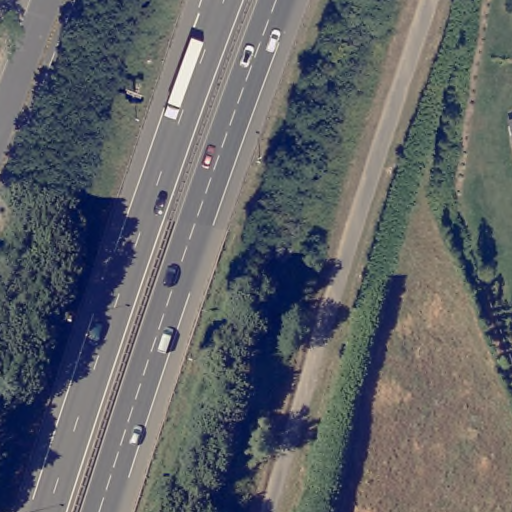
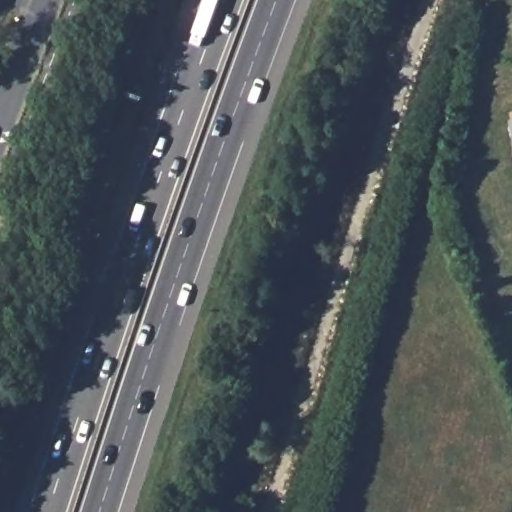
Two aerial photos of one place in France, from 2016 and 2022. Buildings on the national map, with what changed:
unchanged [(512,120),(512,133),(509,121),(512,120)]

